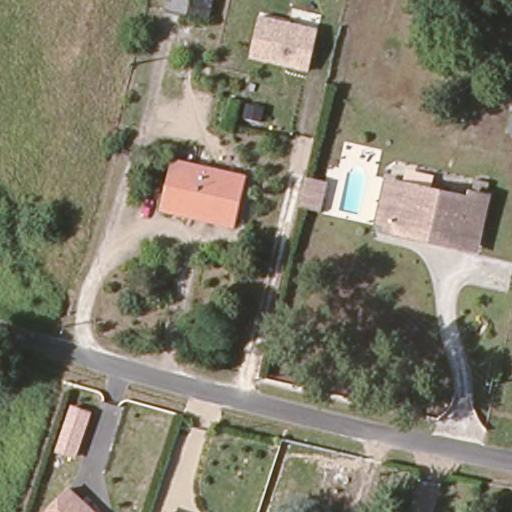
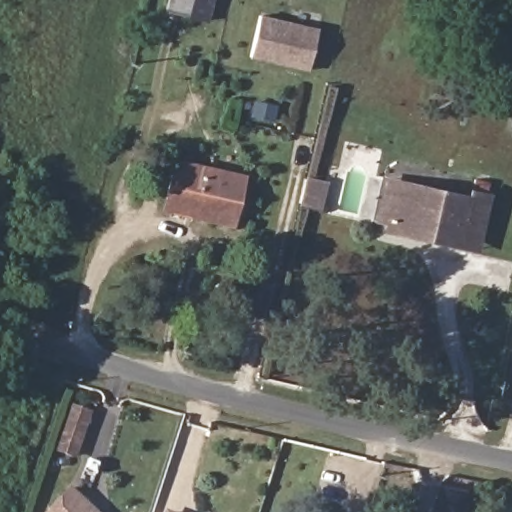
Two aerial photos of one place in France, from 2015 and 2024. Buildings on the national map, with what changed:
unchanged [(172,9),(174,0),(219,0),(214,20),(172,9)]
unchanged [(318,29),(308,72),(252,58),(262,17),(318,29)]
unchanged [(169,193),(177,162),(244,179),(233,225),(194,216),(165,209),(169,193)]
unchanged [(463,249),(442,243),(390,231),(392,223),(379,220),(389,176),(401,179),(475,196),(476,191),(492,194),(485,226),(479,252),(463,249)]
unchanged [(76,459),(55,451),(71,405),(91,412),(76,459)]
unchanged [(98,512),(49,512),(71,488),(98,512)]
unchanged [(165,512),(172,493),(189,499),(185,512),(165,512)]

